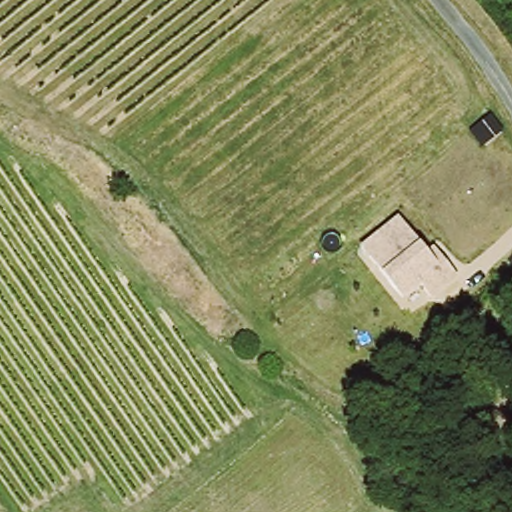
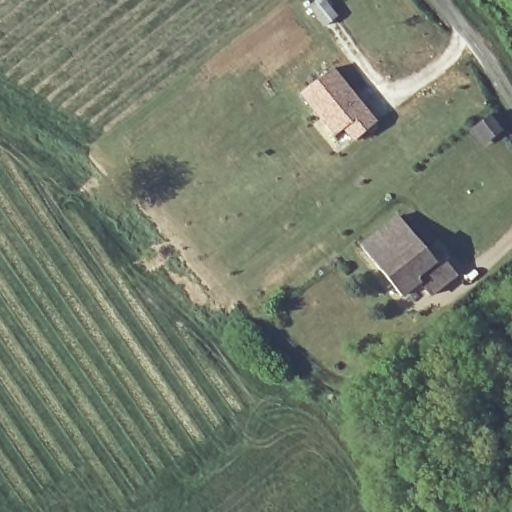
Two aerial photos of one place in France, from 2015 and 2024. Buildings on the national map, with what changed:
new [(378,123),(354,142),(343,128),(333,137),(298,93),(332,66),(378,123)]
unchanged [(360,243),(397,213),(437,260),(444,255),(459,275),(429,295),(422,282),(400,297),(360,243)]

